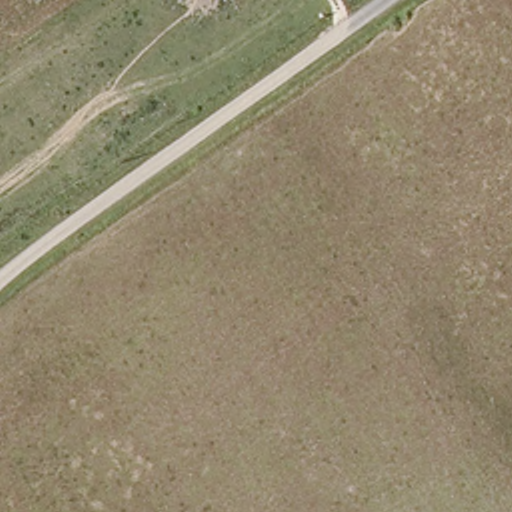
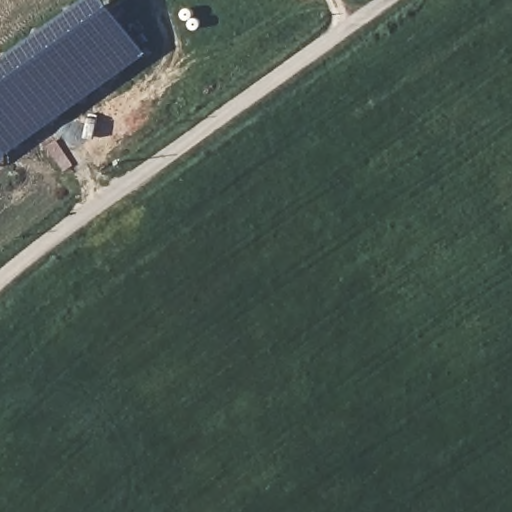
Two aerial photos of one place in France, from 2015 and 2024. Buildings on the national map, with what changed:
new [(78,0),(110,0),(148,51),(0,157),(0,57),(78,0)]

